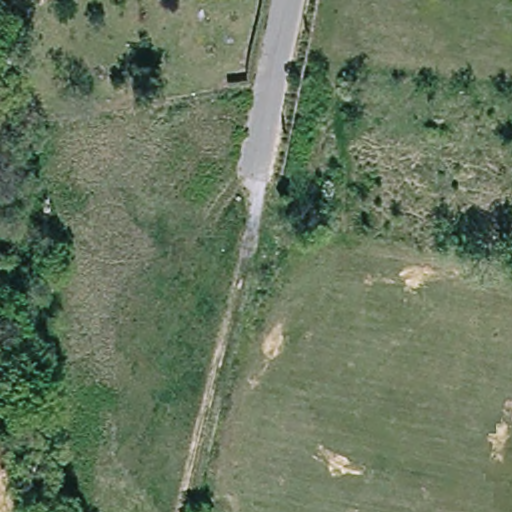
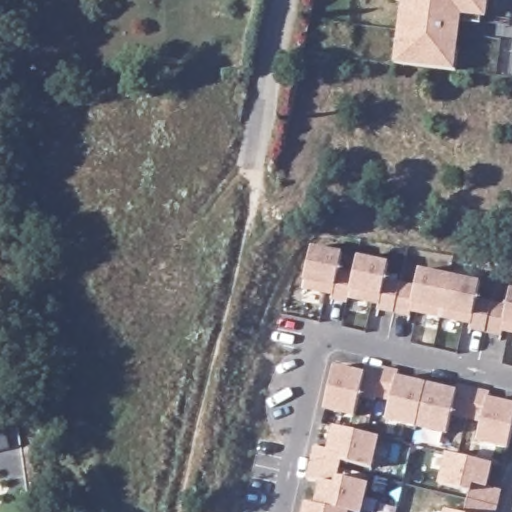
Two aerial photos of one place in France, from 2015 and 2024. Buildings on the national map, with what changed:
new [(463,17),(455,71),(394,65),(401,2),(390,0),(490,0),(487,20),(463,17)]
new [(312,245),(343,252),(339,272),(354,275),(358,255),(390,262),(385,280),(401,283),(416,286),(421,268),(481,282),(477,300),(493,303),(507,307),(511,289),(512,289),(512,335),(504,333),(503,337),(485,334),(470,331),(471,326),(413,313),(411,318),(394,315),(378,311),(379,306),(349,299),(348,304),(332,301),(332,296),(304,290),(305,280),(312,245)]
new [(467,420),(451,418),(448,435),(416,428),(387,420),(390,400),(376,398),(376,402),(359,399),(355,419),(324,411),(335,365),(365,373),(366,367),(382,372),(384,367),(400,371),(400,377),(428,384),(457,390),(458,385),(475,388),(492,393),(492,400),(512,404),(512,436),(509,450),(478,443),(482,424),(467,420)]
new [(334,426),(380,437),(373,468),(342,463),(339,476),(369,485),(362,512),(303,512),(305,503),(315,505),(321,482),(307,479),(315,446),(328,450),(334,426)]
new [(472,493),(439,486),(447,454),(494,465),(488,486),(503,491),(499,507),(498,512),(467,512),(472,493)]
new [(446,511),(449,512),(446,512),(446,511)]

